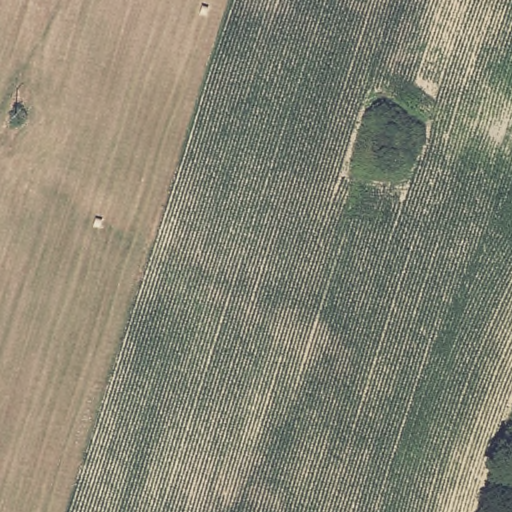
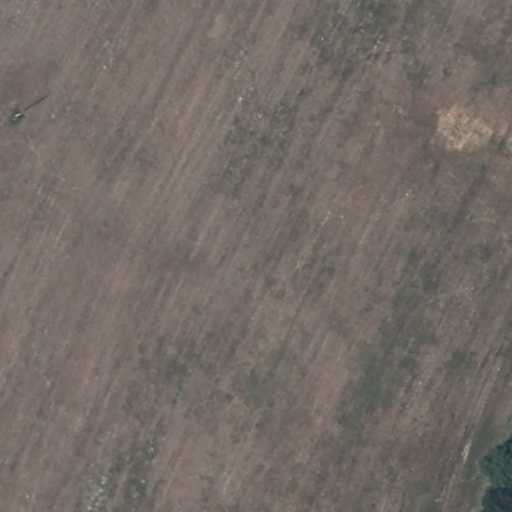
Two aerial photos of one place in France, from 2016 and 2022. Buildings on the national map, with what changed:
[]

